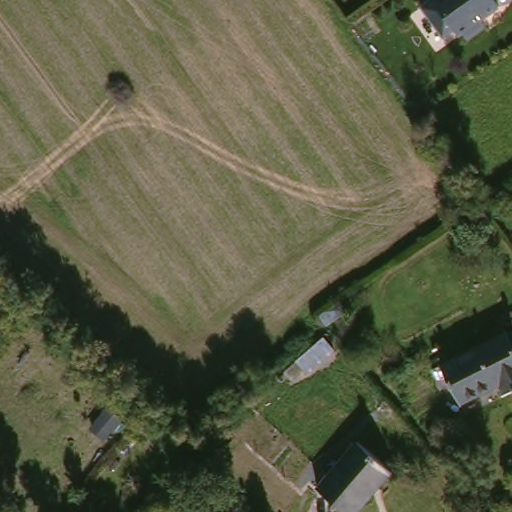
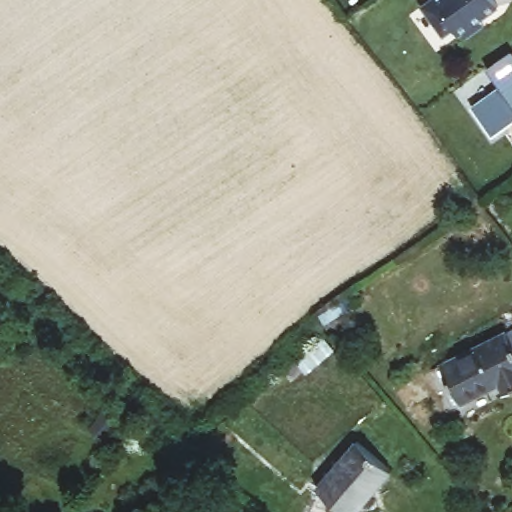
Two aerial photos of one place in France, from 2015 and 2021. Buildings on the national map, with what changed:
unchanged [(503,3),(483,16),(489,25),(469,37),(464,29),(460,32),(456,26),(447,32),(427,1),(428,0),(502,0),(503,3)]
new [(471,106),(500,85),(487,67),(512,49),(512,123),(493,138),(471,106)]
unchanged [(16,292),(0,309),(0,278),(16,292)]
unchanged [(449,365),(512,331),(512,379),(472,402),(449,365)]
unchanged [(101,399),(114,411),(98,430),(84,418),(101,399)]
unchanged [(322,485),(362,439),(395,468),(354,511),(322,485)]

